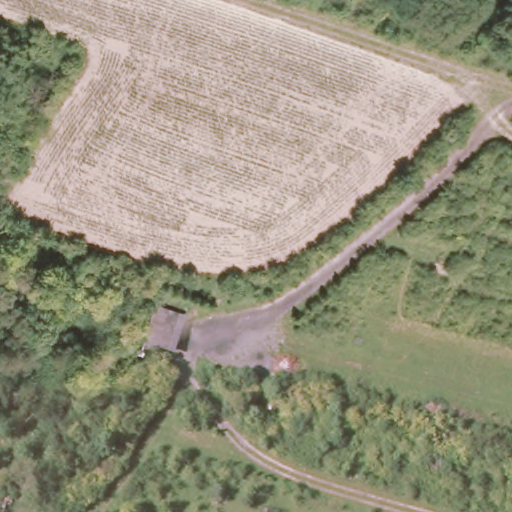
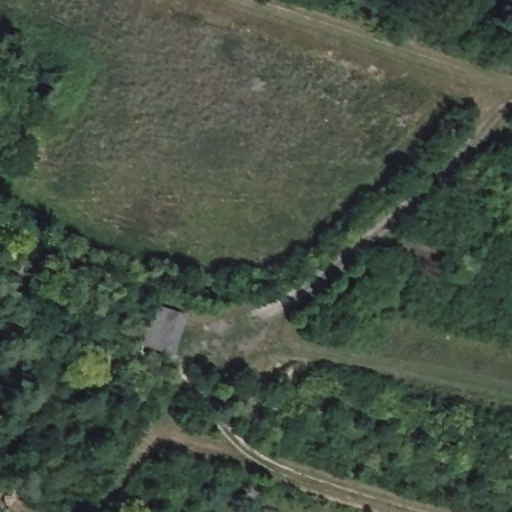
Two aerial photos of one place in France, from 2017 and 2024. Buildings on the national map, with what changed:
unchanged [(140,348),(152,306),(176,315),(163,356),(140,348)]

